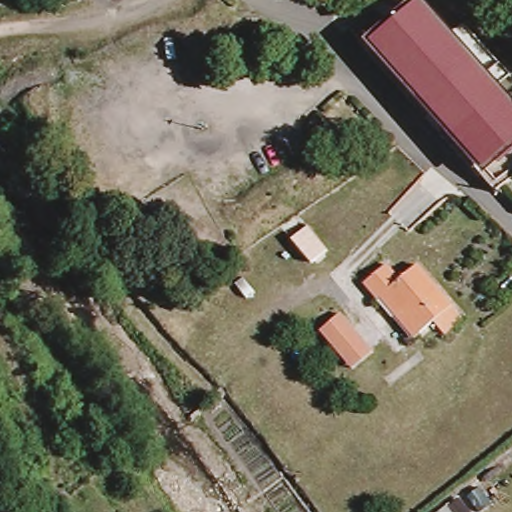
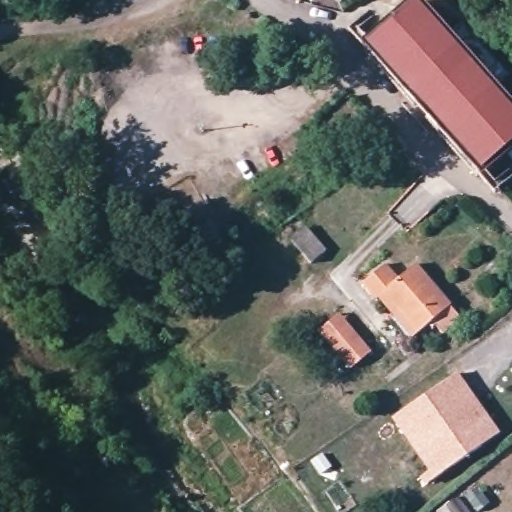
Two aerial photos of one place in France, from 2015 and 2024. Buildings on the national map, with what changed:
unchanged [(450,32),(465,18),(502,57),(486,72),(512,100),(512,142),(482,173),(436,126),(431,130),(393,92),(398,86),(365,53),(415,0),(420,0),(450,32)]
unchanged [(309,226),(329,254),(310,268),(290,241),(309,226)]
unchanged [(361,285),(385,266),(399,284),(420,268),(464,321),(443,339),(432,325),(417,338),(408,346),(375,303),(361,285)]
unchanged [(339,314),(372,352),(347,372),(316,333),(339,314)]
new [(427,486),(421,479),(430,472),(393,418),(460,372),(501,433),(427,486)]
unchanged [(456,512),(437,512),(448,503),(456,512)]

